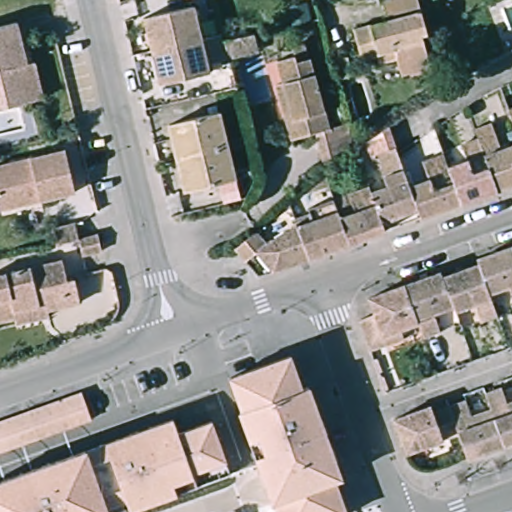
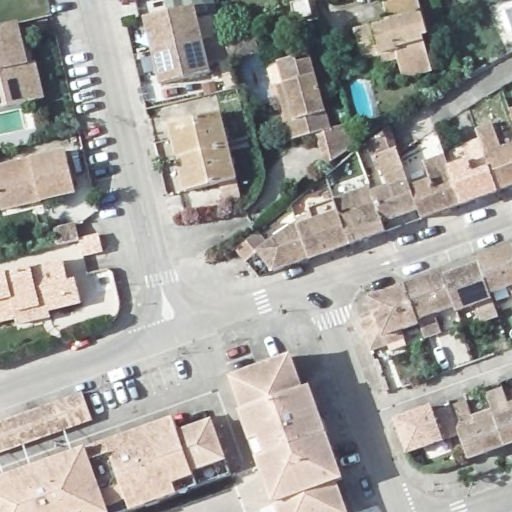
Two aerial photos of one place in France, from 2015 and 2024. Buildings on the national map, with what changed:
unchanged [(400,72),(398,65),(396,55),(378,60),(376,55),(358,59),(350,29),(382,19),(378,0),(414,0),(430,57),(432,64),(400,72)]
unchanged [(201,9),(216,75),(167,86),(152,20),(201,9)]
unchanged [(20,25),(21,29),(31,67),(37,66),(46,100),(40,101),(37,102),(0,112),(0,30),(20,25)]
unchanged [(299,55),(301,60),(314,57),(333,129),(295,139),(279,84),(287,81),(281,60),(299,55)]
unchanged [(227,110),(242,177),(191,189),(176,121),(227,110)]
unchanged [(509,155),(512,154),(512,192),(504,195),(486,143),(482,132),(496,126),(509,155)]
unchanged [(476,166),(470,149),(486,143),(504,195),(470,206),(457,172),(476,166)]
unchanged [(416,191),(424,213),(388,225),(377,195),(393,189),(383,157),(402,150),(416,191)]
unchanged [(10,214),(0,174),(0,172),(71,156),(73,156),(75,162),(83,197),(10,214)]
unchanged [(436,184),(430,165),(452,157),(457,172),(470,206),(427,222),(424,213),(416,191),(436,184)]
unchanged [(377,195),(388,225),(392,235),(357,247),(340,202),(375,190),(377,195)]
unchanged [(304,229),(325,222),(320,210),(340,202),(357,247),(316,261),(304,229)]
unchanged [(259,237),(262,235),(272,244),(303,226),(304,229),(316,261),(280,275),(262,256),(253,263),(242,251),(259,237)]
unchanged [(512,285),(494,291),(482,256),(512,245),(512,285)]
unchanged [(482,256),(494,291),(502,313),(486,318),(480,302),(460,308),(459,304),(446,268),(482,256)]
unchanged [(20,325),(18,317),(0,322),(0,276),(67,260),(72,280),(78,279),(83,301),(49,310),(50,316),(20,325)]
unchanged [(446,268),(459,304),(439,311),(445,327),(429,333),(424,319),(411,281),(446,268)]
unchanged [(393,341),(377,347),(366,316),(383,311),(377,292),(411,281),(424,319),(407,325),(410,335),(393,341)]
unchanged [(305,385),(313,383),(346,475),(338,477),(350,510),(346,512),(284,512),(278,495),(274,495),(244,408),(247,407),(235,373),(294,353),(305,385)]
unchanged [(489,389),(506,383),(512,400),(512,440),(507,442),(495,406),(489,389)]
unchanged [(84,389),(93,416),(0,449),(0,418),(84,389)]
unchanged [(464,430),(454,402),(471,396),(477,412),(495,406),(507,442),(472,455),(464,430)]
unchanged [(401,413),(437,400),(439,407),(454,402),(464,430),(414,448),(401,413)]
unchanged [(181,425),(214,414),(232,467),(112,510),(110,507),(96,512),(0,512),(0,473),(176,412),(181,425)]

